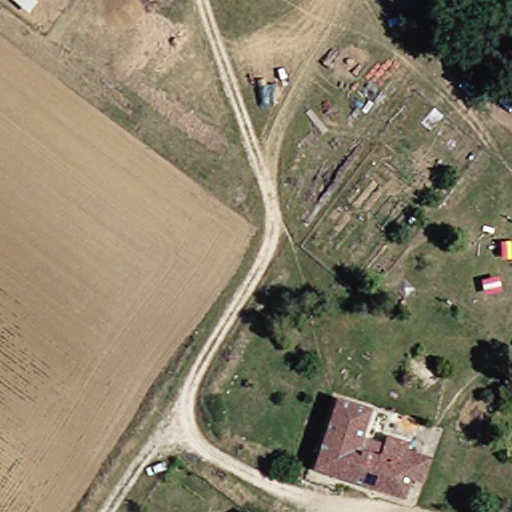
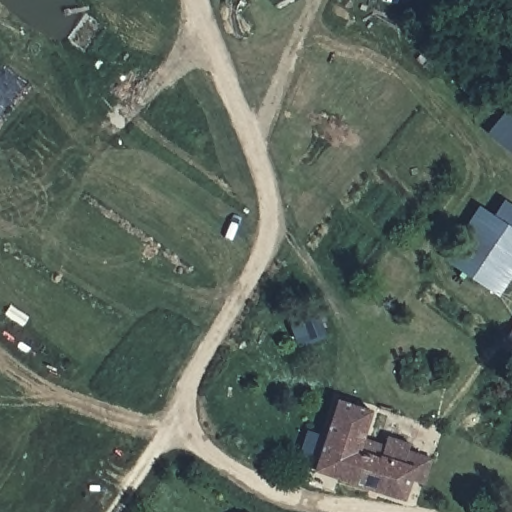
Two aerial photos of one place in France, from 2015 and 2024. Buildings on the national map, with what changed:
new [(512,155),(488,132),(511,107),(512,108),(512,155)]
new [(480,208),(493,216),(504,200),(512,206),(512,274),(498,295),(470,277),(445,260),(480,208)]
unchanged [(325,423),(333,401),(366,413),(359,433),(376,438),(381,424),(409,434),(406,440),(431,451),(428,459),(422,473),(413,469),(402,503),(308,470),(325,423)]
unchanged [(244,511),(245,512),(243,512),(244,511)]

